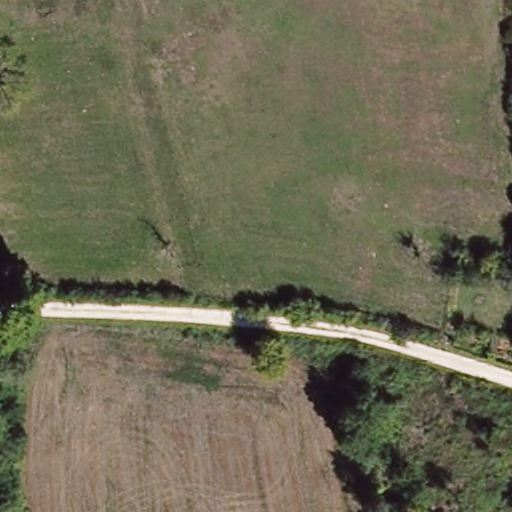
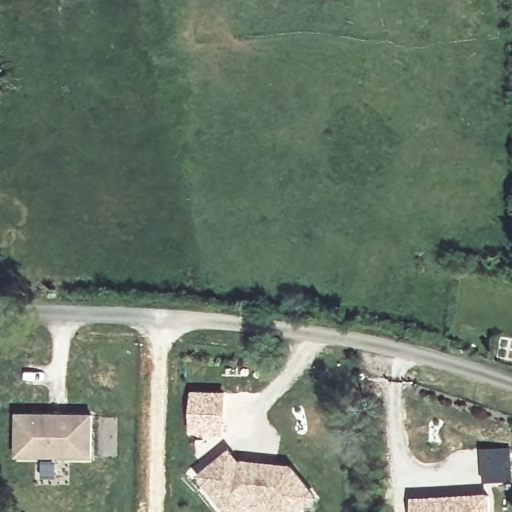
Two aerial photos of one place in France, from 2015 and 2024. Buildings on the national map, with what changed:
new [(190,390),(227,391),(225,435),(188,435),(190,390)]
new [(21,414),(96,413),(95,456),(20,456),(21,414)]
new [(239,466),(241,465),(290,470),(314,499),(298,512),(274,512),(270,506),(252,505),(244,512),(225,512),(199,480),(229,455),(239,466)]
new [(491,498),(491,512),(417,512),(417,500),(491,498)]

